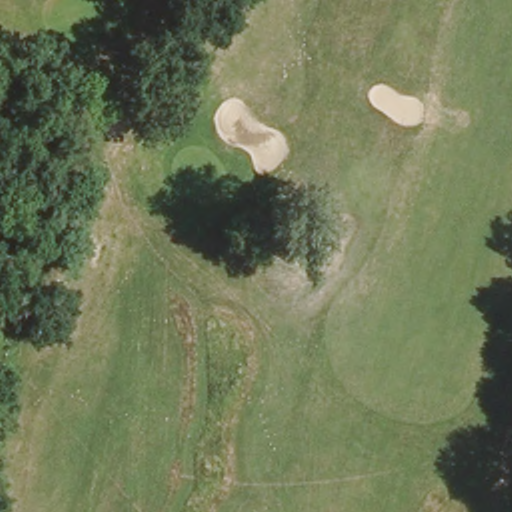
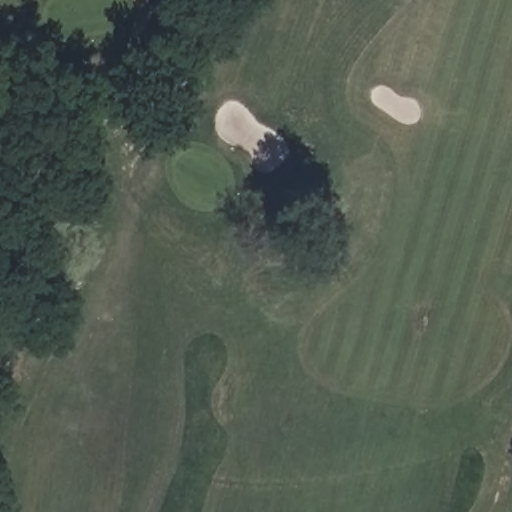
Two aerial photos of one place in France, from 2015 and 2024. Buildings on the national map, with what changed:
[]

